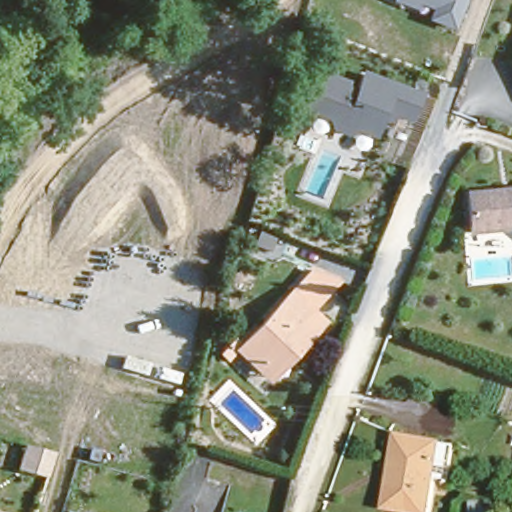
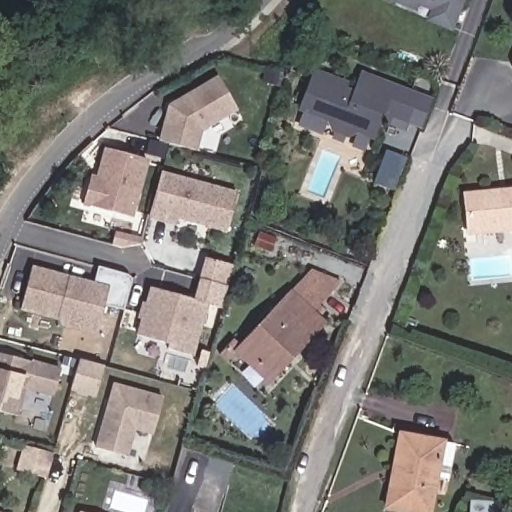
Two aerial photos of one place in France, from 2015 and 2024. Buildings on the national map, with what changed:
unchanged [(430,11),(418,6),(416,11),(386,1),(386,0),(465,0),(453,32),(425,23),(430,11)]
unchanged [(420,93),(410,126),(381,117),(373,139),(358,133),(351,137),(327,132),(325,121),(295,112),(308,71),(353,86),(357,72),(420,93)]
new [(204,131),(198,151),(158,141),(168,105),(219,75),(238,111),(204,131)]
new [(133,219),(83,206),(91,175),(96,176),(104,147),(149,159),(133,219)]
new [(225,232),(178,220),(176,226),(150,219),(162,171),(238,192),(225,232)]
unchanged [(469,224),(465,185),(512,180),(512,219),(469,224)]
new [(150,287),(194,299),(205,257),(233,265),(221,307),(209,305),(194,357),(165,348),(165,344),(136,336),(150,287)]
new [(61,327),(58,320),(20,311),(32,265),(95,282),(98,267),(127,274),(133,277),(125,310),(105,305),(97,335),(61,327)]
unchanged [(306,332),(310,337),(293,355),(288,351),(267,373),(240,347),(312,270),(340,281),(311,312),(318,319),(306,332)]
unchanged [(226,360),(220,354),(233,340),(240,346),(226,360)]
new [(26,388),(19,417),(0,412),(0,351),(61,368),(55,397),(26,388)]
new [(80,360),(105,366),(95,396),(71,388),(80,360)]
new [(163,396),(152,436),(135,431),(127,456),(95,447),(114,382),(163,396)]
unchanged [(443,477),(430,475),(423,509),(381,502),(387,471),(393,472),(401,431),(450,440),(443,477)]
new [(24,446),(52,453),(45,477),(17,469),(24,446)]

